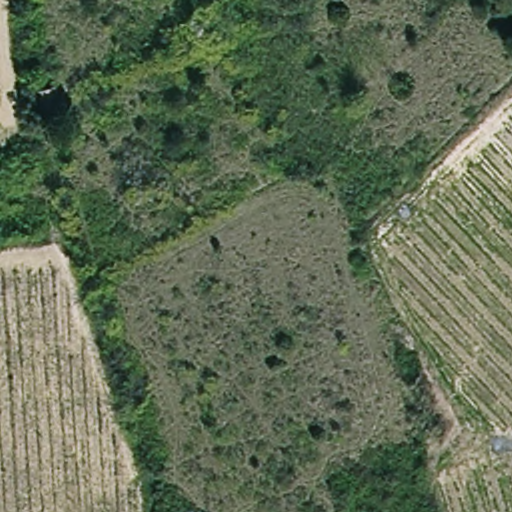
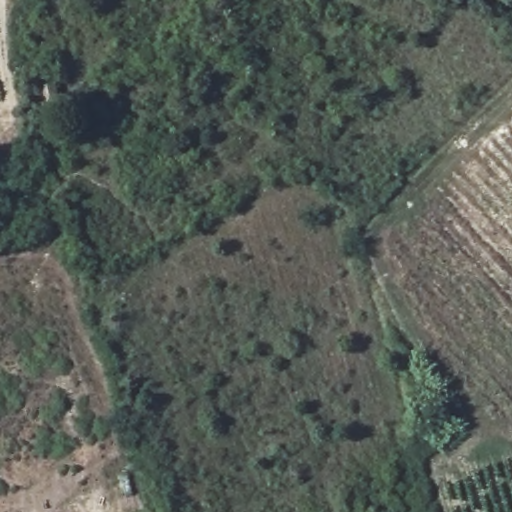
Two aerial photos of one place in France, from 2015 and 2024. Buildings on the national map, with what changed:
unchanged [(36,89),(52,86),(55,105),(39,108),(36,89)]

